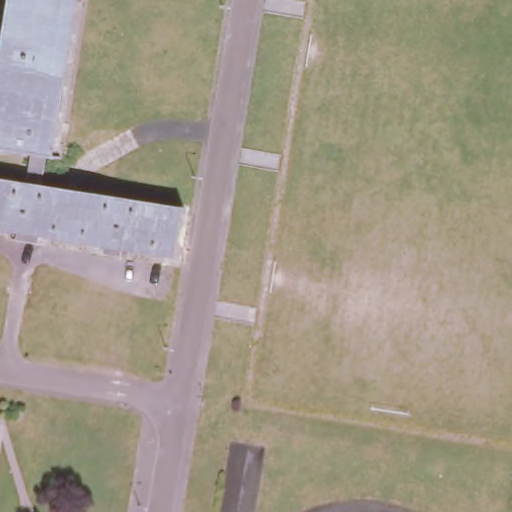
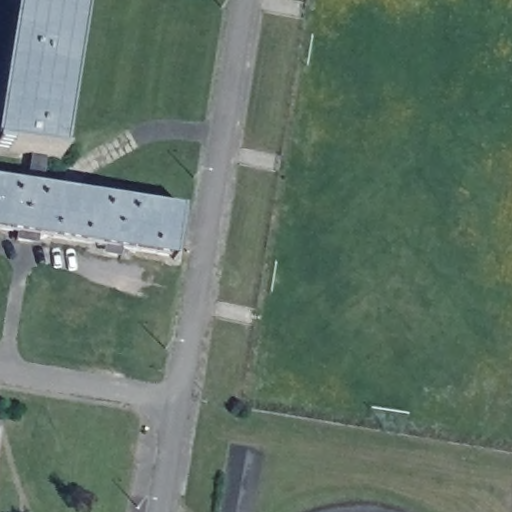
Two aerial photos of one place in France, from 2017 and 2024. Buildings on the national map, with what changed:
unchanged [(0,225),(0,179),(27,183),(33,151),(0,146),(0,102),(17,0),(85,0),(60,155),(48,153),(42,186),(185,209),(178,253),(0,225)]

